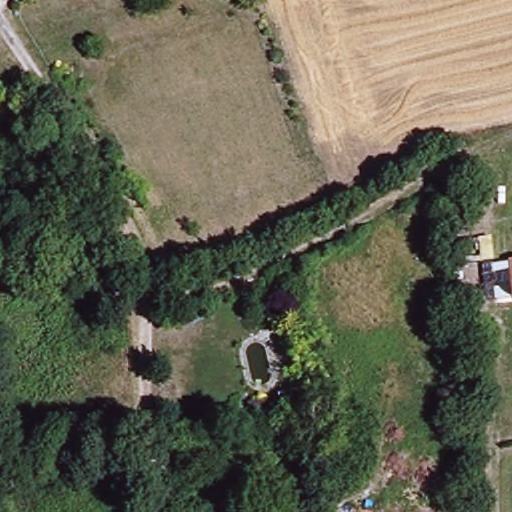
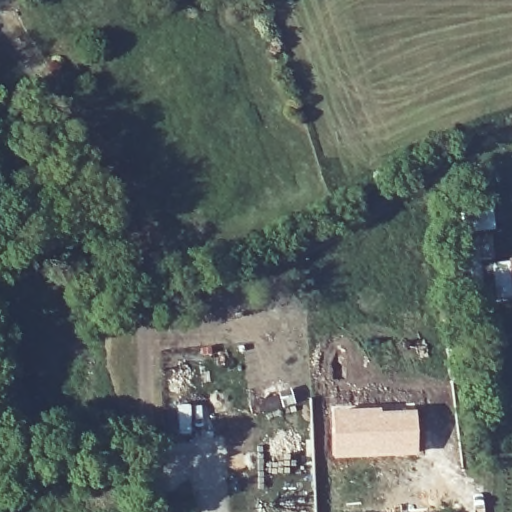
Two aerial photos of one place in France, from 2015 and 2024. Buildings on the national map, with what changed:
unchanged [(512,300),(488,302),(483,259),(512,257),(512,300)]
unchanged [(281,396),(292,393),(295,404),(283,407),(281,396)]
new [(380,409),(415,409),(417,455),(331,458),(331,407),(380,409)]

